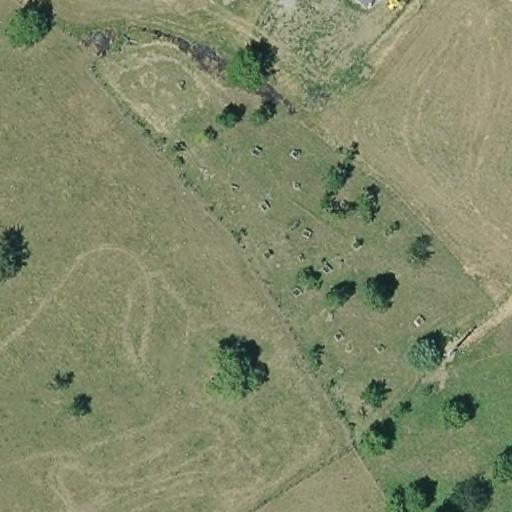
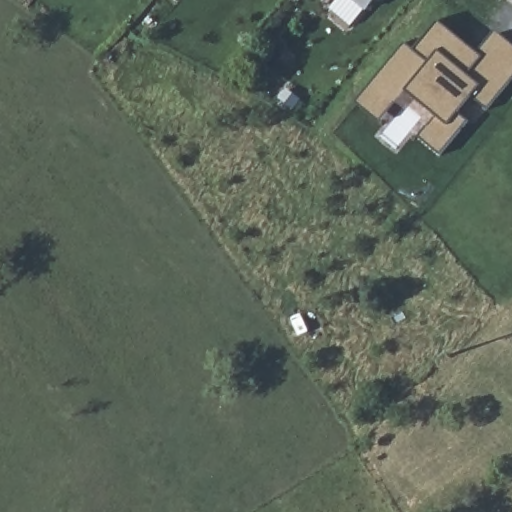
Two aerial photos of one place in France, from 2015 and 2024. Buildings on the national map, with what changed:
unchanged [(365,0),(376,0),(372,5),(365,0)]
new [(475,53),(494,29),(512,45),(512,75),(485,108),(469,96),(457,111),(465,120),(438,153),(417,136),(432,116),(402,91),(377,121),(354,101),(401,43),(411,51),(435,19),(475,53)]

